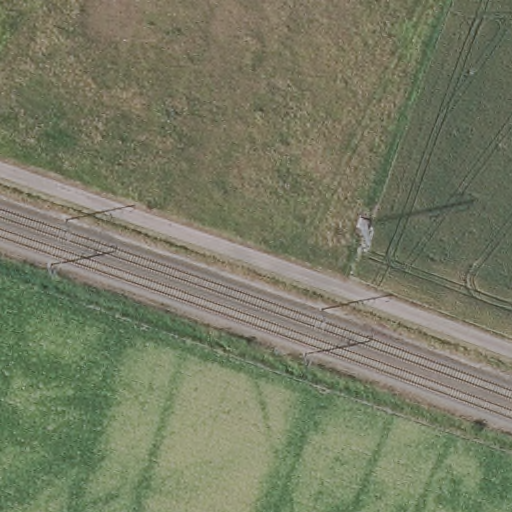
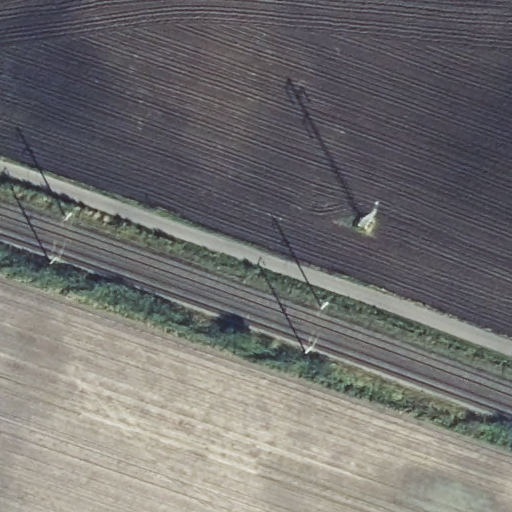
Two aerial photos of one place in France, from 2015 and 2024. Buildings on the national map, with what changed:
[]

